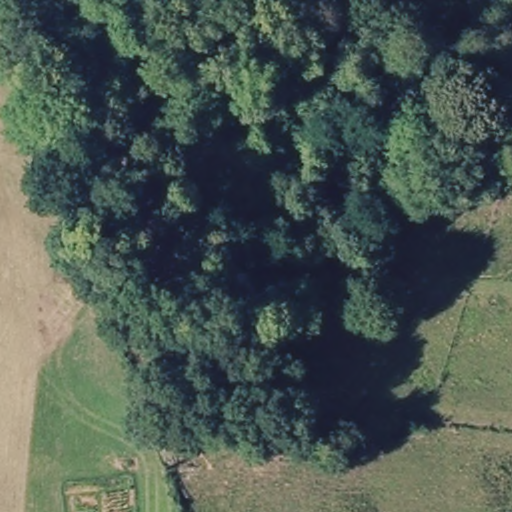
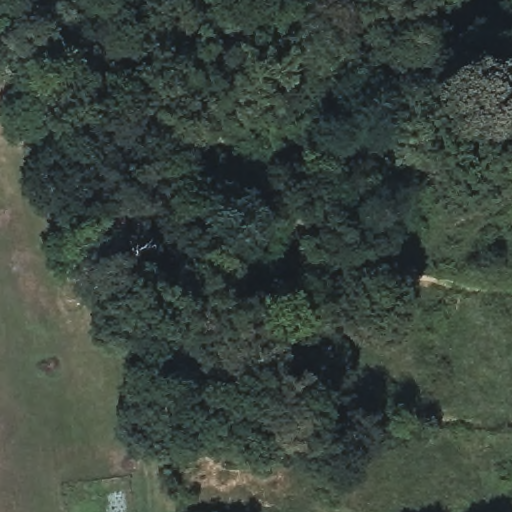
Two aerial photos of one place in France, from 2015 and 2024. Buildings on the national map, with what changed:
[]

